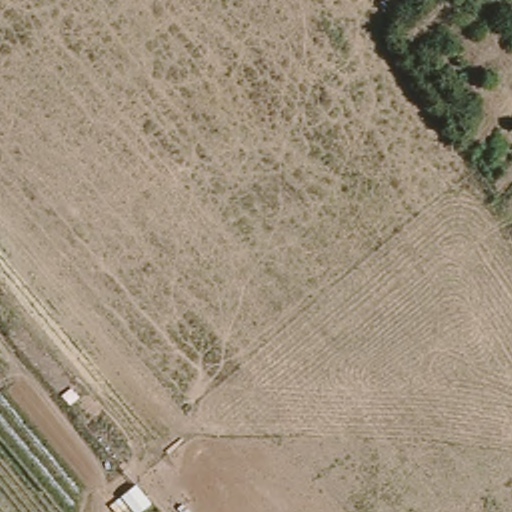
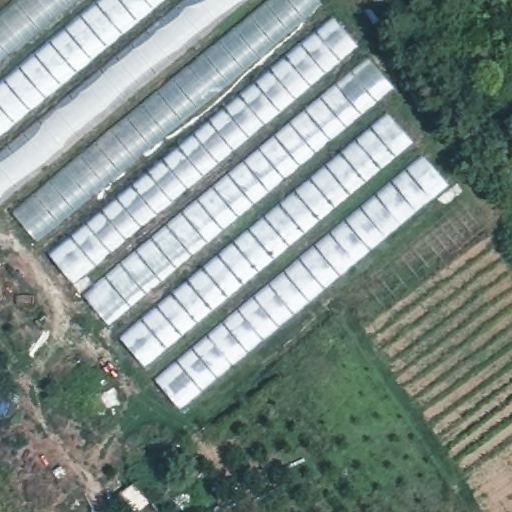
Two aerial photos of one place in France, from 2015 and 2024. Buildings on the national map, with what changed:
new [(243,0),(0,202),(0,15),(17,0),(243,0)]
new [(274,0),(317,0),(392,87),(376,102),(446,182),(179,408),(16,215),(274,0)]
new [(118,497),(143,476),(171,512),(130,512),(118,497)]

